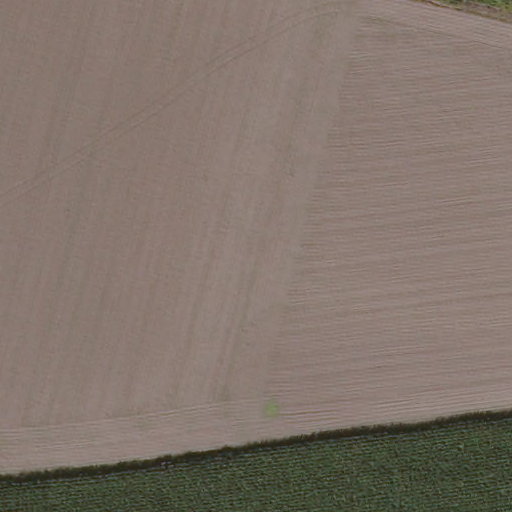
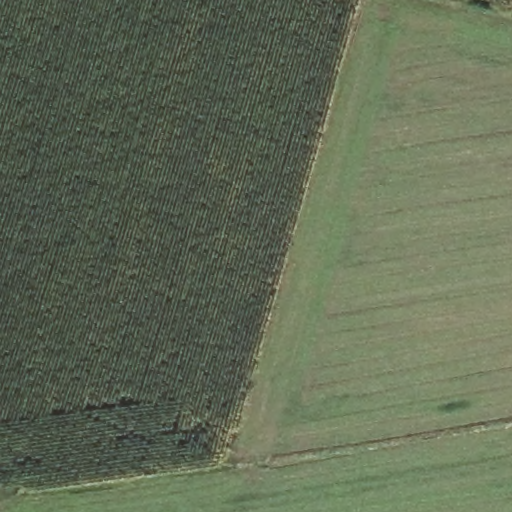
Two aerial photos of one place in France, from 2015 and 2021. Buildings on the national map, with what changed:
[]

